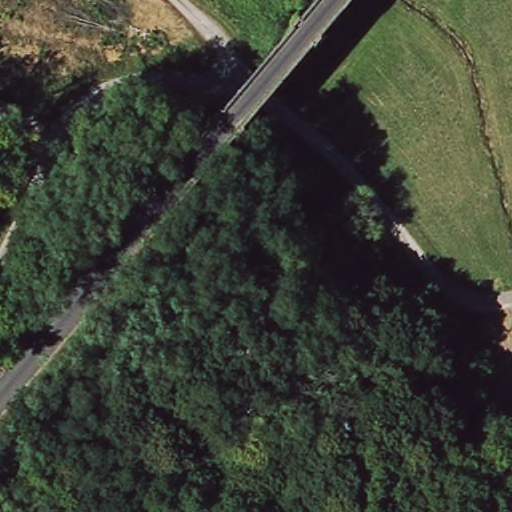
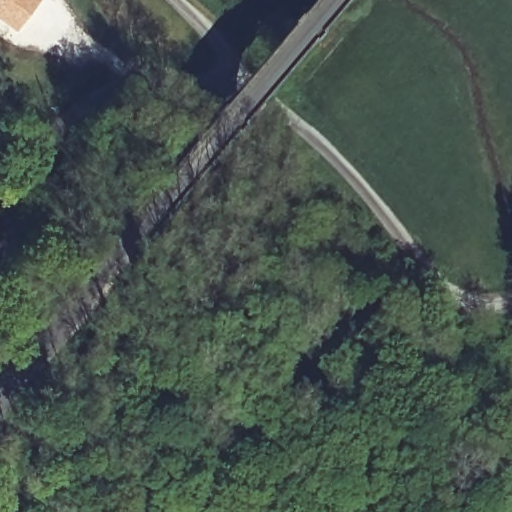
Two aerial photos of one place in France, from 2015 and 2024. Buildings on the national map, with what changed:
new [(15,32),(0,21),(0,0),(41,0),(15,32)]

